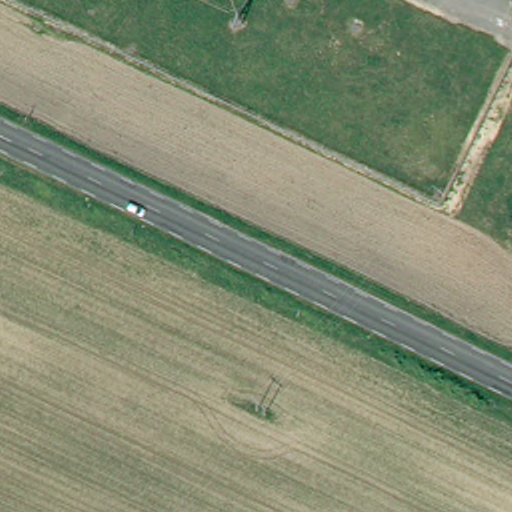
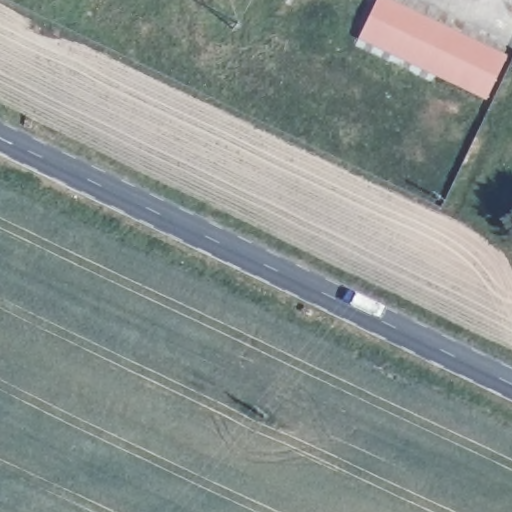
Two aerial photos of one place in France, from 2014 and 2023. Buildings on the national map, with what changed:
new [(378,0),(379,0),(505,60),(487,99),(360,37),(378,0)]

